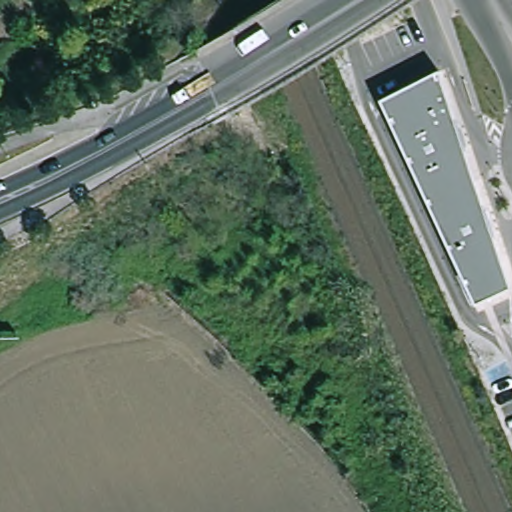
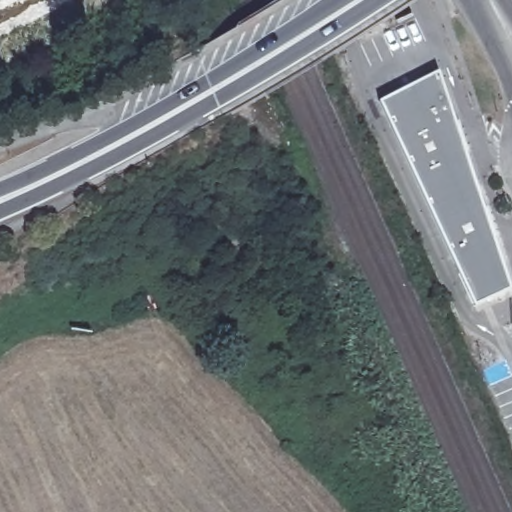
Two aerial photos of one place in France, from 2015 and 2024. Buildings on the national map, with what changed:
unchanged [(512,287),(512,294),(477,310),(383,104),(445,76),(512,287)]

